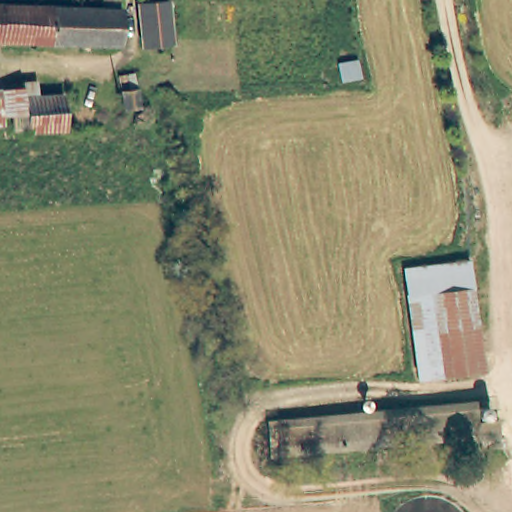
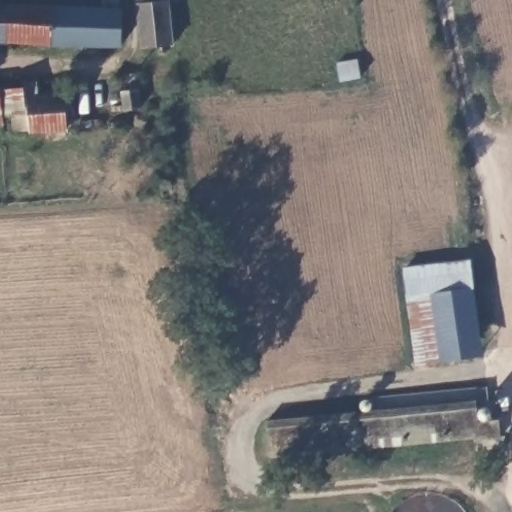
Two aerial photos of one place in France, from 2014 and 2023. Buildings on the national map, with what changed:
unchanged [(168,47),(140,49),(136,5),(138,0),(167,0),(168,47)]
unchanged [(103,13),(103,4),(120,5),(119,14),(121,14),(121,50),(53,47),(54,13),(94,13),(103,13)]
unchanged [(53,47),(0,45),(0,11),(54,13),(53,47)]
unchanged [(355,61),(357,80),(337,81),(335,62),(355,61)]
unchanged [(64,131),(22,133),(23,126),(12,127),(12,117),(2,117),(1,90),(21,90),(21,82),(35,83),(35,97),(63,96),(64,131)]
unchanged [(116,108),(115,88),(128,89),(133,107),(116,108)]
unchanged [(2,126),(0,126),(0,90),(1,90),(2,117),(2,126)]
unchanged [(472,289),(408,297),(404,268),(469,261),(472,289)]
unchanged [(472,289),(482,371),(418,377),(408,297),(472,289)]
unchanged [(488,402),(490,424),(511,422),(512,434),(512,439),(283,458),(279,419),(427,407),(488,402)]

